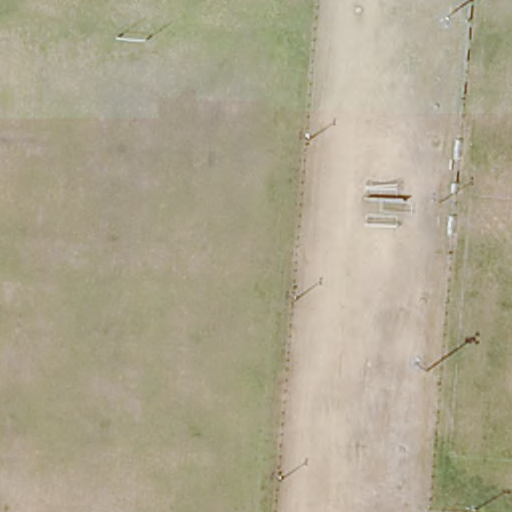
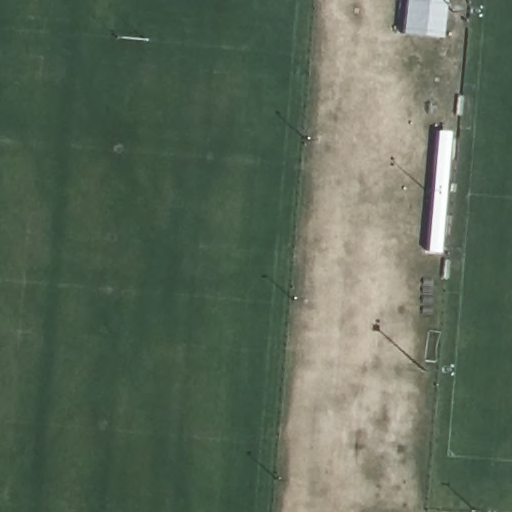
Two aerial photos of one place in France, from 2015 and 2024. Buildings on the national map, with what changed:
new [(445,0),(441,37),(403,32),(408,0),(445,0)]

